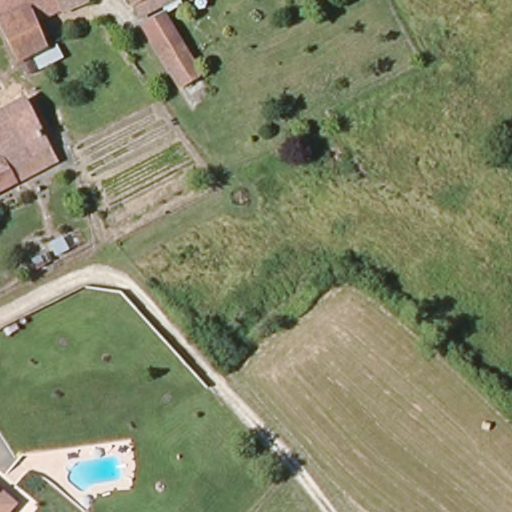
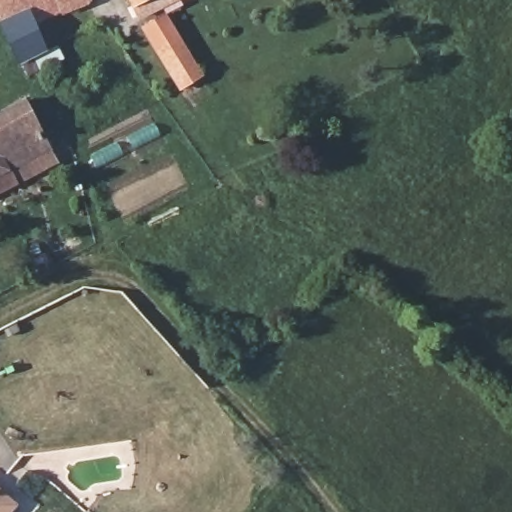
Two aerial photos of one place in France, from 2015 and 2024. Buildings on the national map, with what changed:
unchanged [(101,5),(42,30),(53,52),(23,66),(0,17),(0,0),(98,0),(101,5)]
unchanged [(147,14),(140,0),(174,0),(147,14)]
unchanged [(207,87),(196,91),(191,83),(181,88),(143,25),(167,12),(207,87)]
unchanged [(44,171),(0,194),(0,132),(34,115),(59,163),(44,171)]
unchanged [(2,497),(13,506),(8,512),(0,512),(0,495),(2,497)]

